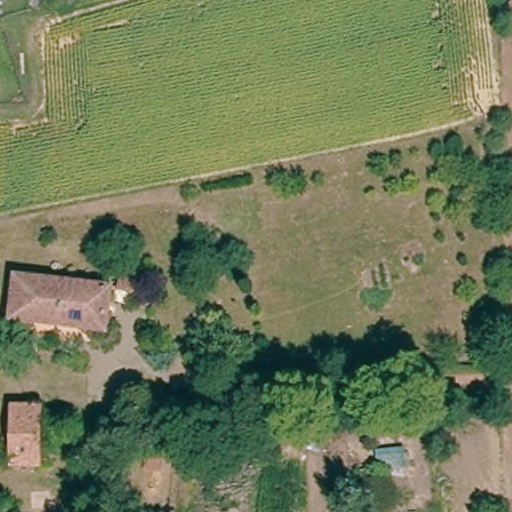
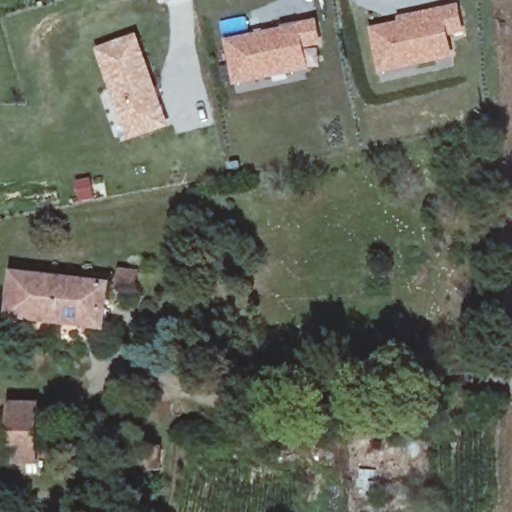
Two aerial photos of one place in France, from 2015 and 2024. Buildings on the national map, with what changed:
new [(400,22),(399,17),(462,6),(468,35),(452,39),(456,60),(381,74),(371,29),(400,22)]
new [(319,21),(325,47),(307,51),(311,71),(235,86),(225,40),(319,21)]
new [(172,130),(130,144),(96,51),(139,35),(172,130)]
unchanged [(15,267),(37,270),(105,277),(99,340),(7,329),(15,267)]
unchanged [(34,400),(33,447),(32,468),(20,468),(6,468),(6,400),(34,400)]

